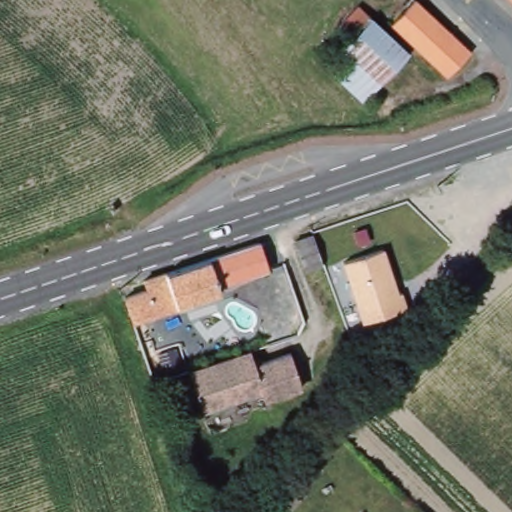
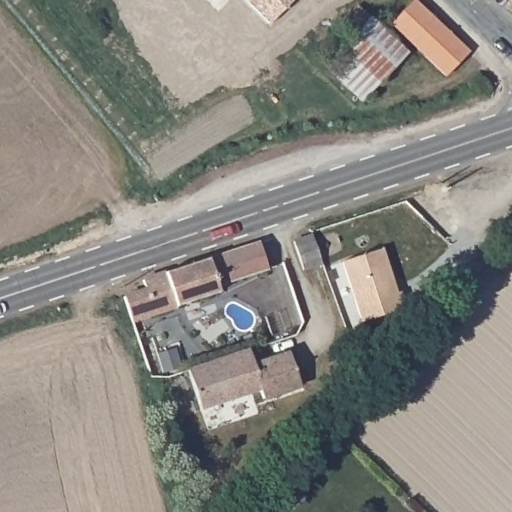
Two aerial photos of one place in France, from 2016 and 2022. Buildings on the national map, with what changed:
new [(231,1),(230,0),(232,0),(231,1)]
new [(270,25),(245,0),(295,0),(270,25)]
unchanged [(475,52),(451,76),(396,24),(420,0),(421,0),(475,52)]
unchanged [(413,52),(367,101),(331,67),(376,18),(413,52)]
unchanged [(325,264),(306,270),(302,259),(296,241),(315,235),(325,264)]
unchanged [(220,287),(222,292),(135,322),(126,297),(149,290),(145,281),(262,242),(271,270),(220,287)]
unchanged [(387,256),(400,293),(404,292),(410,308),(366,323),(345,263),(385,250),(387,256)]
unchanged [(194,371),(255,350),(260,364),(296,353),(307,386),(268,398),(266,390),(206,410),(194,371)]

